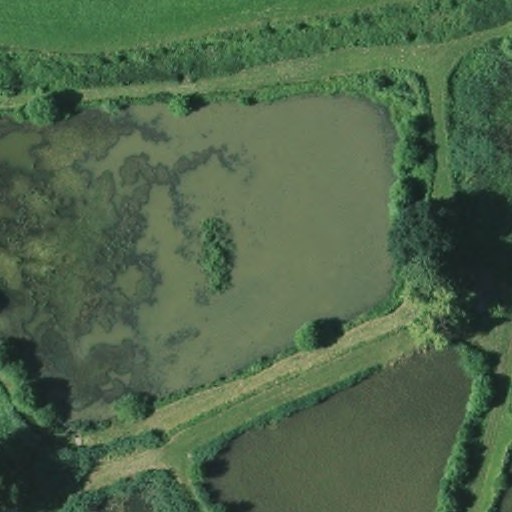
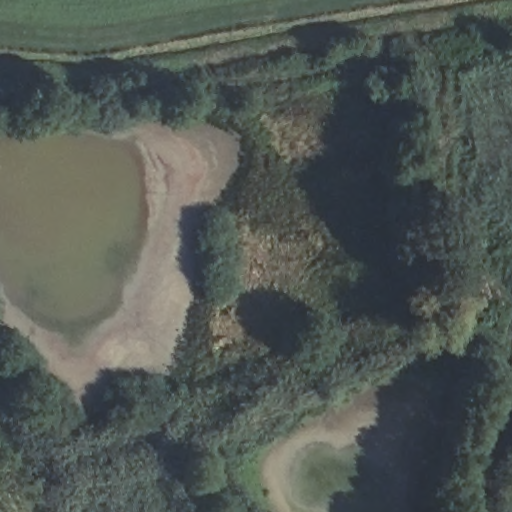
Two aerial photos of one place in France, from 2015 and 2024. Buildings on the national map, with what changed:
unchanged [(492,294),(495,299),(476,307),(464,279),(461,269),(474,264),(477,274),(485,295),(492,294)]

